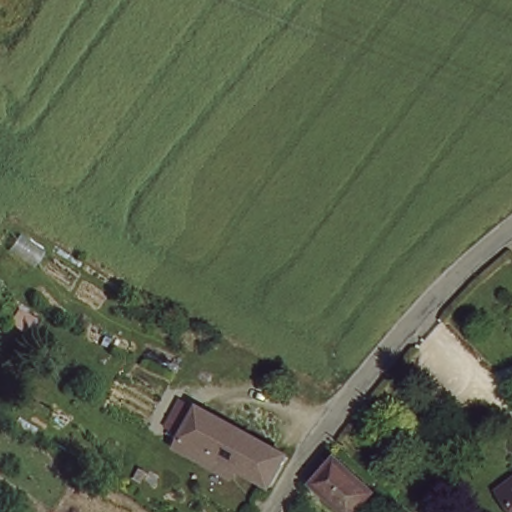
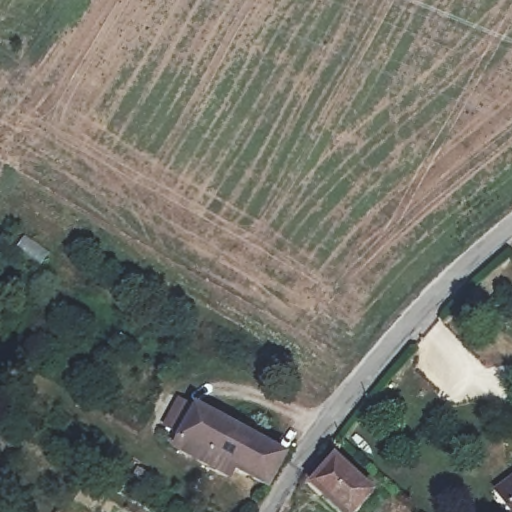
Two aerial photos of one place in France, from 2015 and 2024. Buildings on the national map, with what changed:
unchanged [(203,413),(204,411),(294,461),(274,492),(186,442),(188,440),(171,430),(186,403),(203,413)]
unchanged [(316,464),(324,454),(331,460),(339,453),(376,488),(355,512),(349,512),(308,475),(316,464)]
unchanged [(497,492),(512,481),(512,512),(511,512),(497,492)]

